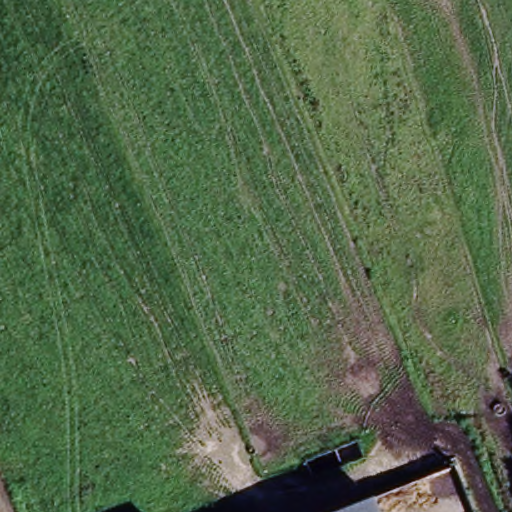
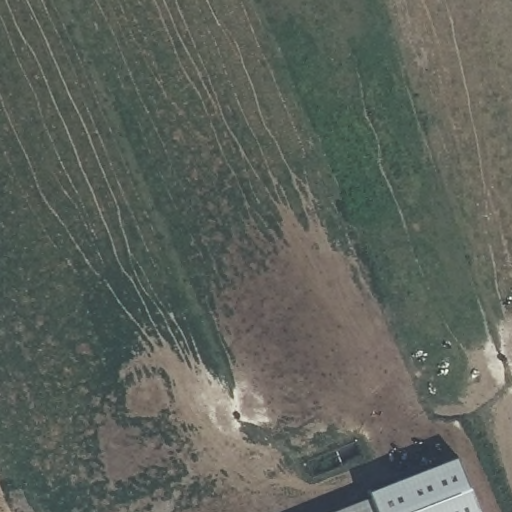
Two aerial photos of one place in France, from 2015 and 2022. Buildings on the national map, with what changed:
new [(375,496),(460,466),(479,512),(382,512),(375,496)]
unchanged [(382,512),(336,512),(375,496),(382,512)]

